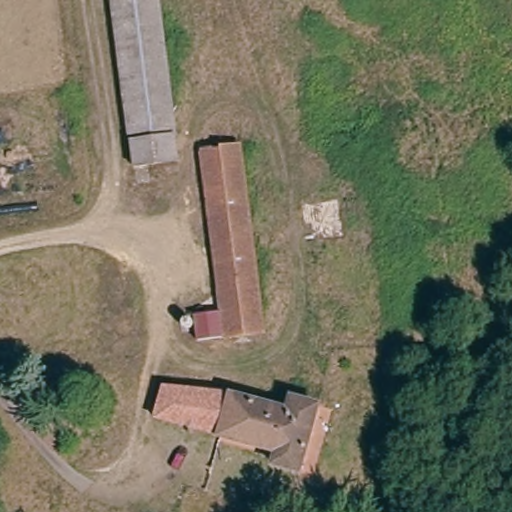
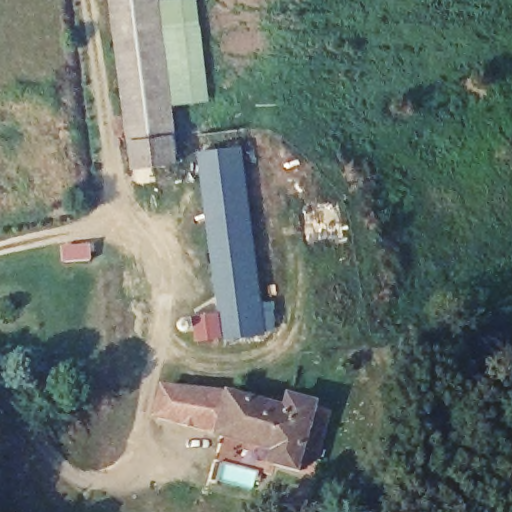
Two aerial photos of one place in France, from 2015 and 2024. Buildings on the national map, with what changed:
unchanged [(179,162),(134,168),(112,0),(158,0),(179,162)]
new [(211,102),(172,106),(158,0),(199,0),(211,102)]
unchanged [(202,152),(247,146),(271,332),(226,338),(202,152)]
unchanged [(170,390),(237,396),(294,412),(297,400),(323,407),(305,472),(279,465),(282,453),(161,419),(170,390)]

